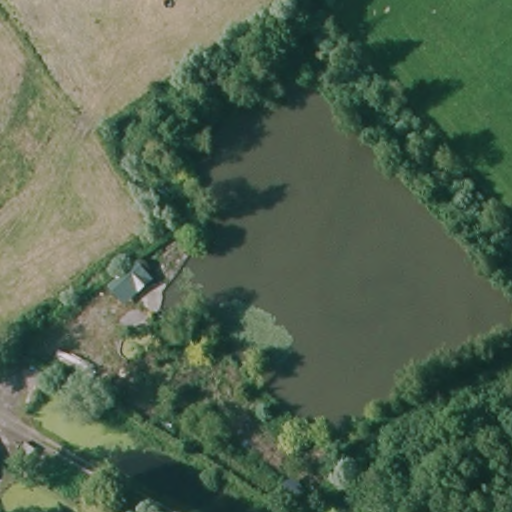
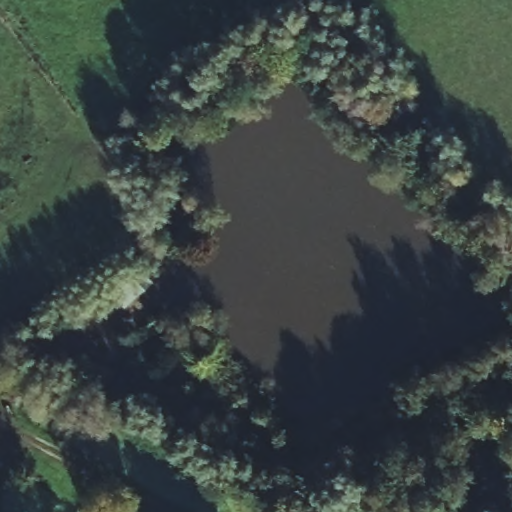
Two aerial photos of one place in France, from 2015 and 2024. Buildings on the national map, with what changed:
unchanged [(284,488),(293,482),(304,495),(295,504),(284,488)]

